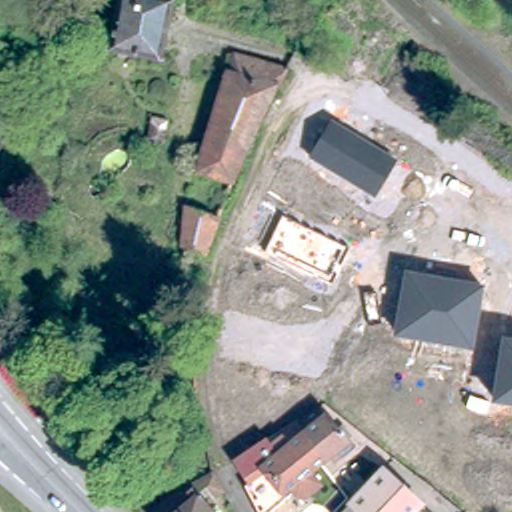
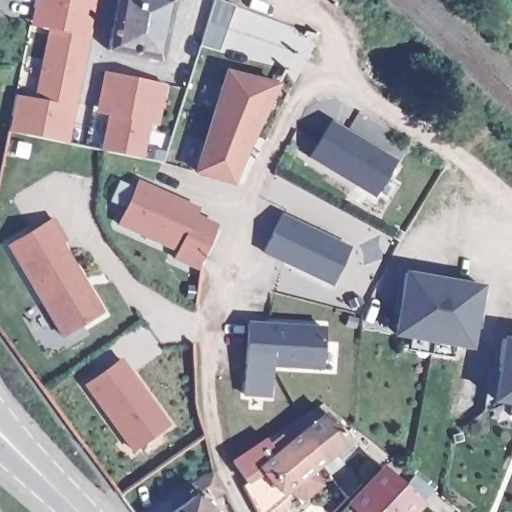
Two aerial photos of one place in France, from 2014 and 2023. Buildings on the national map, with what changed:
new [(9,130),(16,94),(33,97),(48,28),(31,26),(37,0),(97,0),(69,142),(9,130)]
unchanged [(108,36),(114,0),(168,0),(160,46),(108,36)]
new [(212,0),(233,8),(216,54),(197,48),(212,0)]
unchanged [(233,67),(241,54),(283,74),(275,88),(257,125),(230,181),(192,166),(233,67)]
new [(94,114),(100,97),(102,74),(161,86),(158,104),(153,103),(148,125),(145,125),(138,160),(99,153),(107,116),(94,114)]
unchanged [(398,159),(376,198),(309,156),(332,119),(398,159)]
new [(217,222),(198,269),(174,257),(178,250),(119,224),(139,179),(200,207),(197,213),(217,222)]
unchanged [(351,247),(335,283),(266,250),(284,214),(351,247)]
new [(105,311),(63,335),(7,244),(54,215),(67,239),(63,241),(105,311)]
unchanged [(485,284),(475,349),(393,335),(404,270),(485,284)]
unchanged [(325,325),(323,369),(273,366),(272,396),(244,395),(249,321),(325,325)]
unchanged [(491,401),(501,335),(512,337),(512,405),(491,401)]
new [(133,451),(85,384),(123,357),(171,422),(133,451)]
unchanged [(243,491),(233,471),(243,464),(246,461),(249,458),(317,415),(324,423),(346,450),(352,457),(342,467),(336,459),(323,467),(312,476),(320,485),(302,499),(300,495),(287,505),(280,512),(253,512),(243,491)]
unchanged [(425,497),(410,512),(339,512),(387,462),(425,497)]
unchanged [(214,496),(196,474),(209,463),(215,474),(221,490),(214,496)]
unchanged [(148,504),(187,479),(216,512),(155,512),(148,504)]

